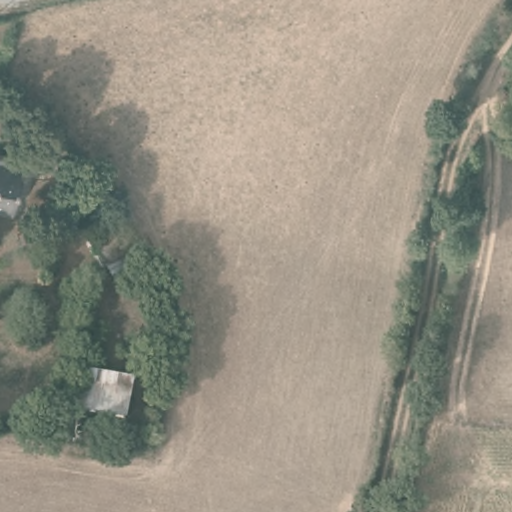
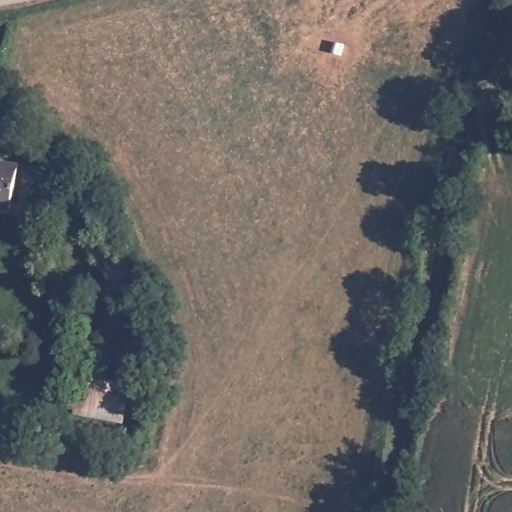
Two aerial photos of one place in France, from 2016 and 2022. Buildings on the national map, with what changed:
unchanged [(22,167),(10,210),(0,208),(0,162),(22,167)]
unchanged [(110,235),(124,262),(99,275),(85,245),(110,235)]
unchanged [(76,410),(82,375),(136,381),(127,415),(76,410)]

